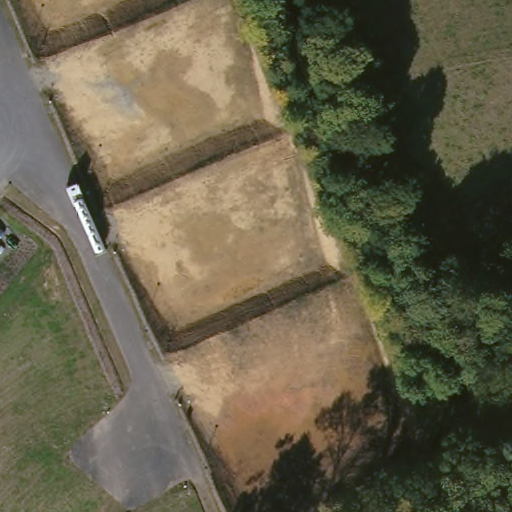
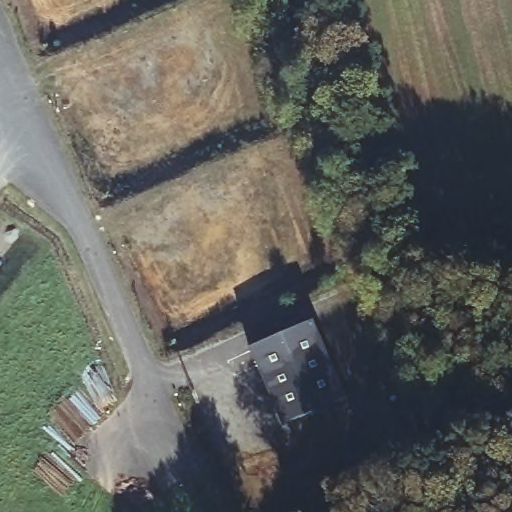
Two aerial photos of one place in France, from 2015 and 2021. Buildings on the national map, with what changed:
new [(309,319),(343,397),(281,424),(247,346),(309,319)]

